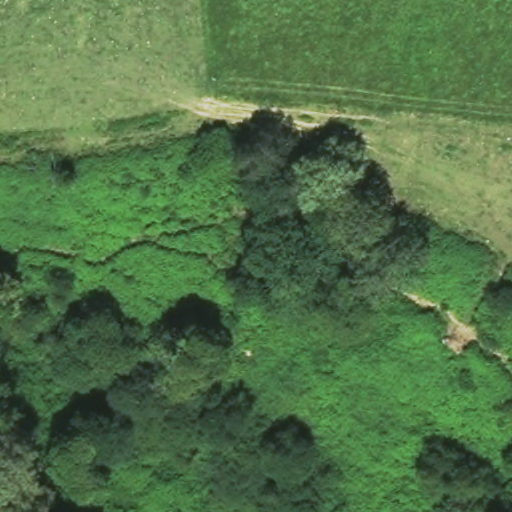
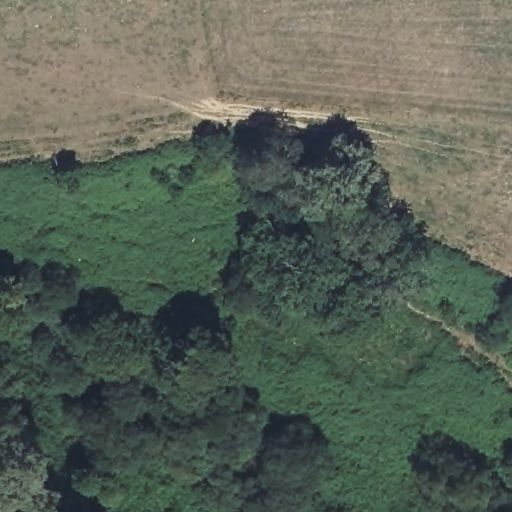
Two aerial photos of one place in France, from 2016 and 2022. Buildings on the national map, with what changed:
unchanged [(70,283),(74,291),(67,294),(70,302),(61,305),(56,296),(50,298),(46,291),(70,283)]

